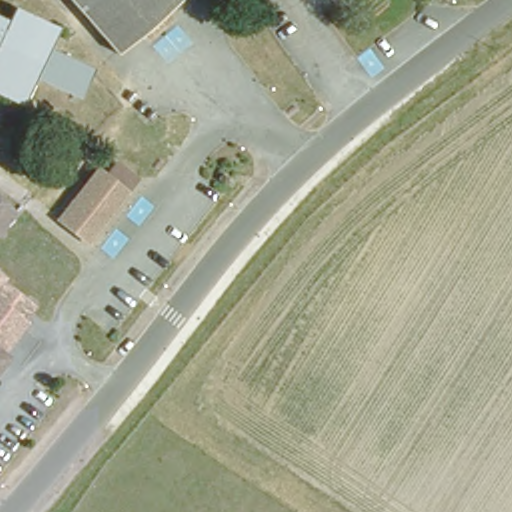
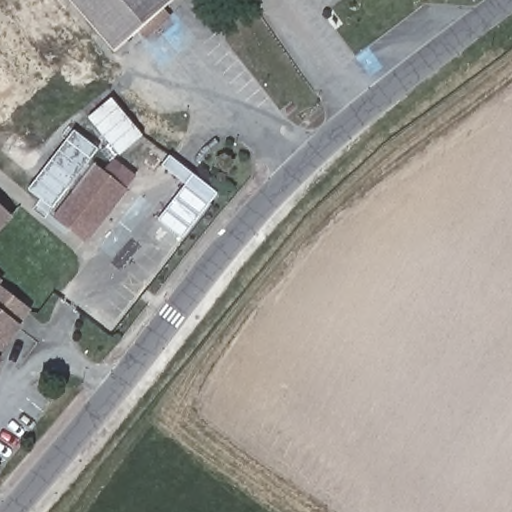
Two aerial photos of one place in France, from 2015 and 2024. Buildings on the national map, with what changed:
unchanged [(156,21),(160,27),(145,39),(138,29),(111,51),(69,0),(173,0),(161,9),(166,14),(156,21)]
demolished [(11,7),(52,30),(44,46),(28,77),(14,104),(0,96),(0,16),(5,19),(11,7)]
demolished [(44,46),(91,66),(77,96),(28,77),(44,46)]
new [(121,155),(88,118),(113,98),(144,136),(121,155)]
new [(52,207),(27,190),(75,130),(98,149),(52,207)]
unchanged [(105,171),(116,156),(139,174),(89,237),(58,212),(96,164),(105,171)]
demolished [(15,321),(20,325),(0,353),(0,288),(26,306),(15,321)]
demolished [(0,368),(0,362),(3,364),(0,368)]

